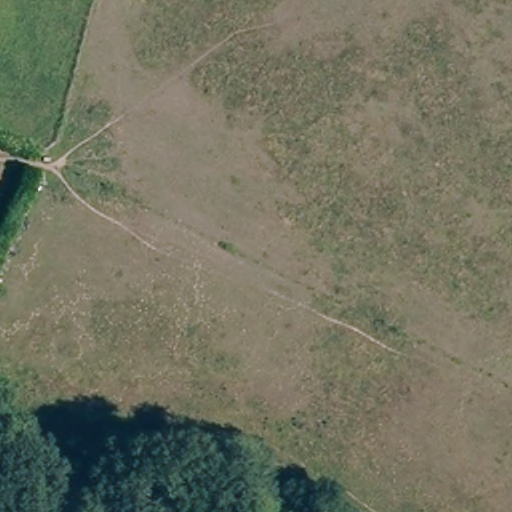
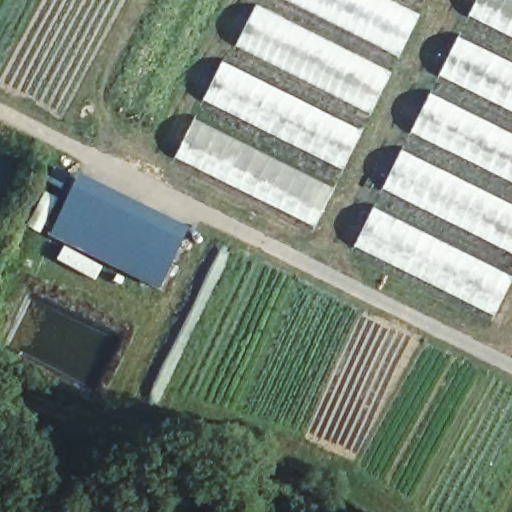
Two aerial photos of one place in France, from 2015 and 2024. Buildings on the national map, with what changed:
new [(422,15),(401,57),(286,0),(391,0),(422,15)]
new [(512,36),(470,15),(478,0),(512,0),(512,36)]
new [(236,47),(257,5),(393,72),(372,114),(236,47)]
new [(460,35),(512,60),(512,111),(440,75),(460,35)]
new [(225,60),(364,131),(344,170),(206,100),(225,60)]
new [(512,181),(412,132),(432,92),(512,131),(512,181)]
new [(176,157),(196,118),(335,186),(315,226),(176,157)]
new [(404,147),(512,202),(512,254),(383,189),(404,147)]
new [(192,230),(162,290),(54,236),(84,175),(192,230)]
new [(512,283),(496,315),(356,246),(375,206),(512,274),(512,283)]

